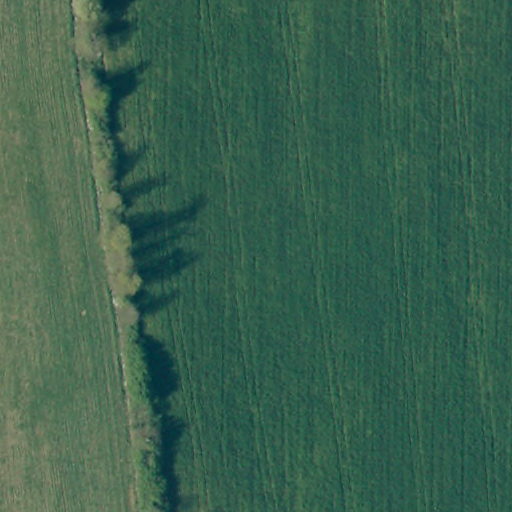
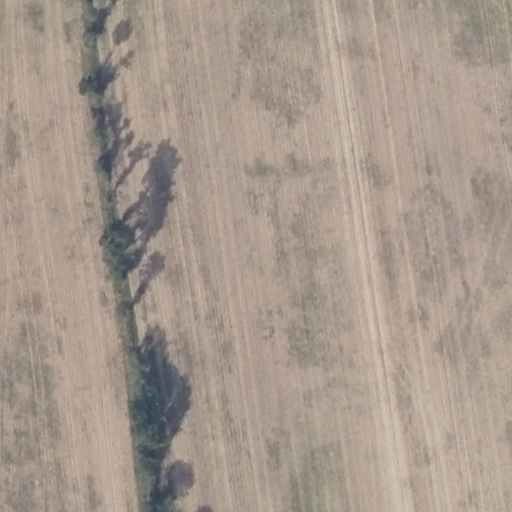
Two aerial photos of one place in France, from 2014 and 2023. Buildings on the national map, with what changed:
[]

